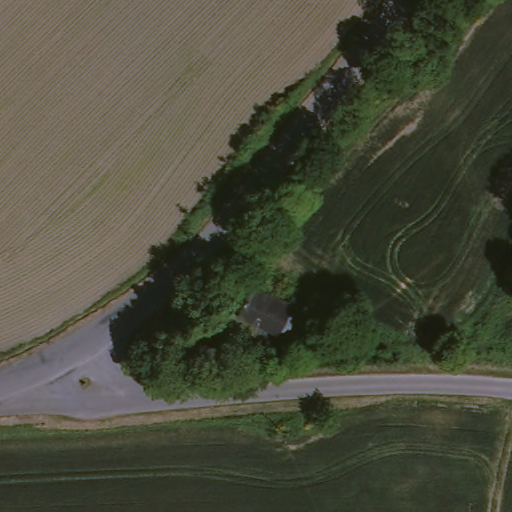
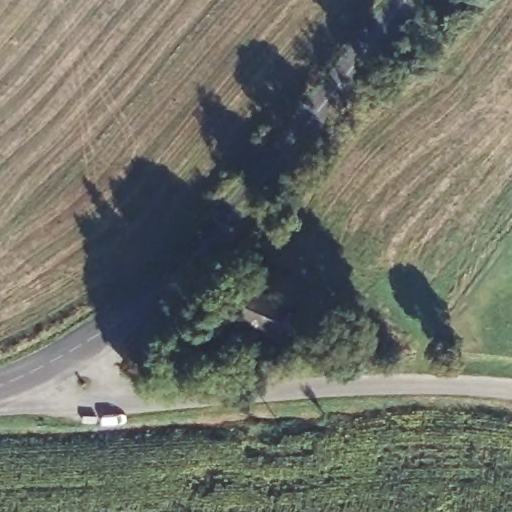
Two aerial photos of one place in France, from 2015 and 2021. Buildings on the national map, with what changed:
unchanged [(293,302),(290,311),(305,316),(300,332),(286,327),(284,334),(237,317),(248,285),(293,302)]

